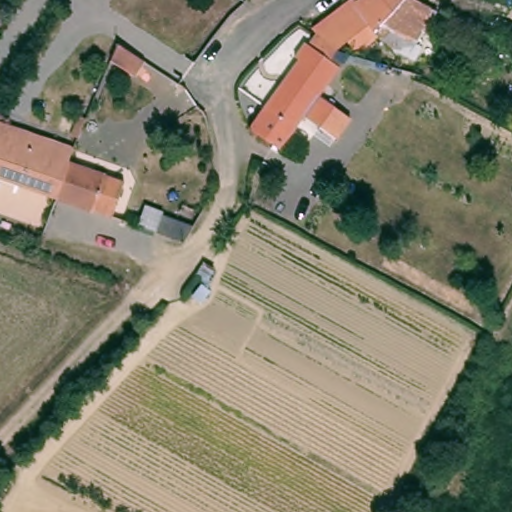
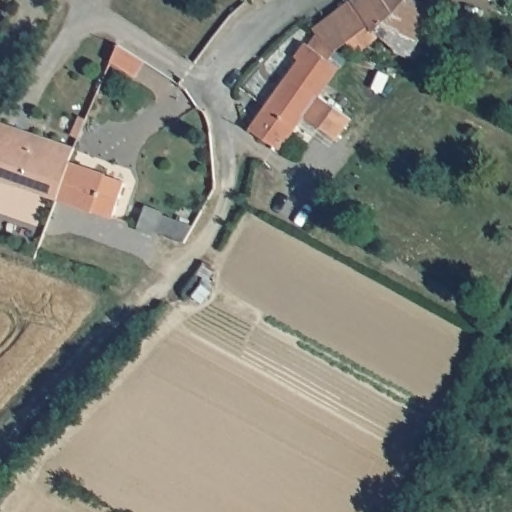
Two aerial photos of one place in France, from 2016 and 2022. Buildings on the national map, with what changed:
unchanged [(330,22),(340,15),(346,10),(355,4),(360,0),(416,0),(429,7),(410,43),(398,37),(388,44),(381,35),(361,50),(356,54),(345,42),(336,50),(316,33),(330,22)]
unchanged [(298,60),(294,56),(304,42),(308,45),(316,33),(336,50),(329,60),(339,67),(318,96),(349,118),(335,139),(304,116),(278,149),(257,135),(249,129),(298,60)]
unchanged [(117,45),(144,62),(134,77),(110,61),(117,45)]
unchanged [(83,125),(78,137),(70,134),(78,116),(86,119),(83,125)]
unchanged [(0,181),(0,124),(68,147),(63,162),(51,199),(0,181)]
unchanged [(51,199),(63,162),(119,182),(107,217),(51,199)]
unchanged [(161,215),(193,226),(184,242),(155,232),(161,215)]
unchanged [(214,269),(207,280),(197,273),(204,263),(214,269)]
unchanged [(200,301),(192,296),(202,285),(209,291),(200,301)]

